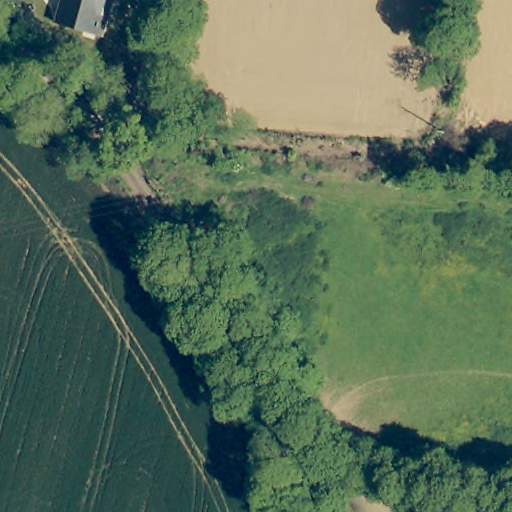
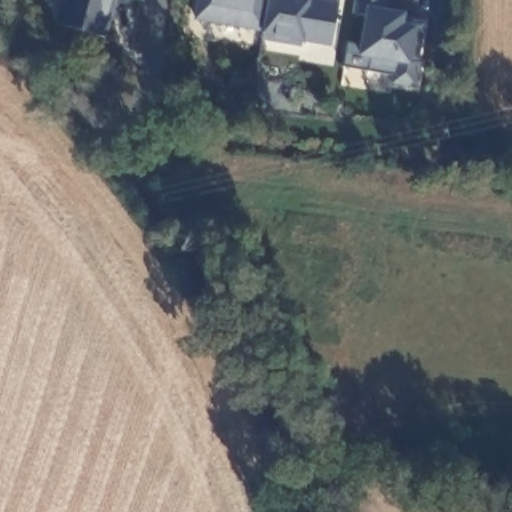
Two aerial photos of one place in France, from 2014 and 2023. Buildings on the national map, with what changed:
unchanged [(107,12),(111,17),(106,35),(58,22),(64,0),(111,0),(107,12)]
new [(301,41),(300,47),(261,41),(261,31),(197,21),(200,0),(339,0),(331,46),(301,41)]
new [(390,83),(391,75),(343,66),(348,41),(360,44),(364,16),(354,14),(356,0),(393,0),(391,9),(405,12),(403,23),(421,25),(415,61),(420,62),(416,88),(390,83)]
unchanged [(350,512),(328,512),(327,508),(349,505),(350,512)]

